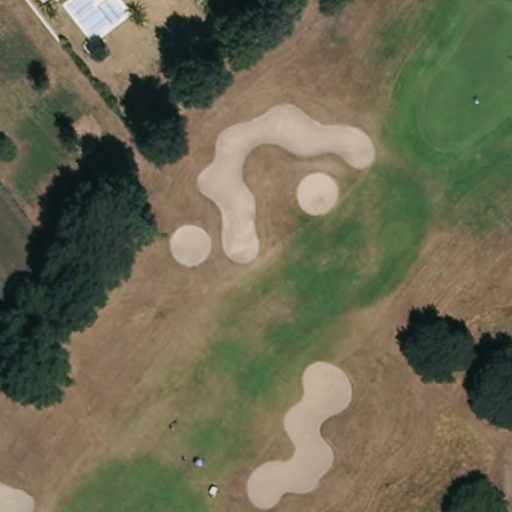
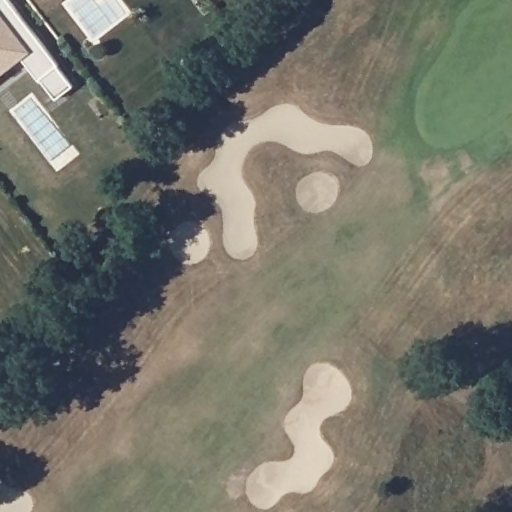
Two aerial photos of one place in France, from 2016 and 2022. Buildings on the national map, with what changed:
new [(59,65),(58,66),(73,86),(56,99),(41,79),(40,80),(18,52),(0,66),(0,0),(9,0),(59,65)]

